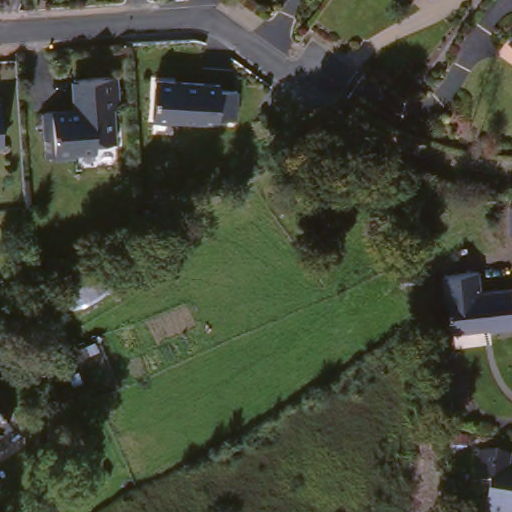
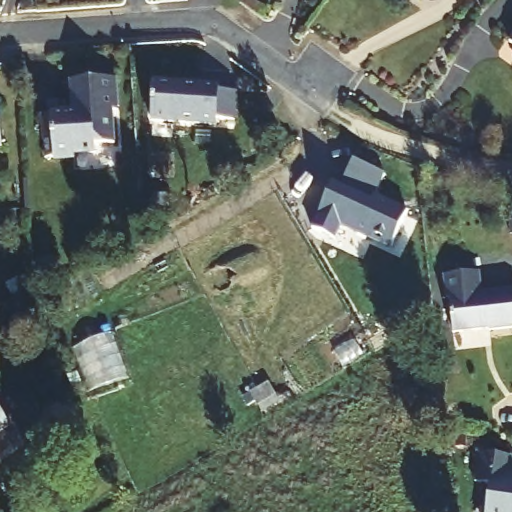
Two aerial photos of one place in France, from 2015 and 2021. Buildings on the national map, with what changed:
unchanged [(512,53),(512,54),(511,53),(512,53)]
unchanged [(215,86),(215,91),(232,92),(231,121),(214,120),(214,125),(149,122),(150,83),(215,86)]
unchanged [(117,120),(109,120),(111,151),(92,152),(92,158),(71,160),(72,166),(42,168),(40,123),(75,120),(72,89),(116,87),(117,120)]
new [(332,179),(342,183),(356,155),(384,168),(374,190),(407,205),(390,241),(356,225),(357,223),(342,216),(333,233),(311,223),(332,179)]
unchanged [(512,229),(508,229),(508,203),(512,203),(512,229)]
unchanged [(512,289),(512,327),(491,329),(491,328),(455,331),(451,297),(448,297),(446,274),(482,271),(484,292),(512,289)]
unchanged [(11,430),(0,436),(0,412),(11,430)]
unchanged [(512,512),(483,512),(484,507),(487,504),(490,490),(475,488),(479,457),(510,462),(508,480),(512,481),(512,512)]

